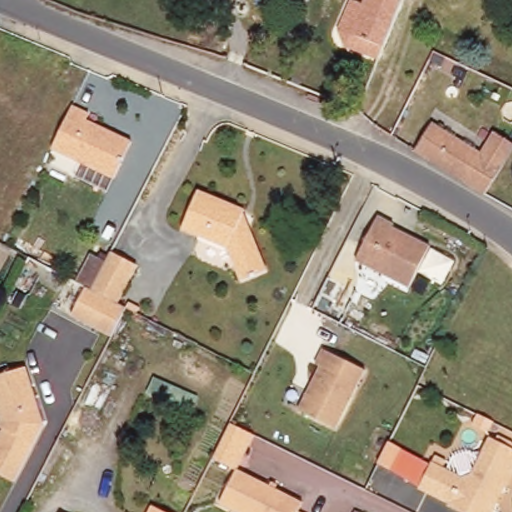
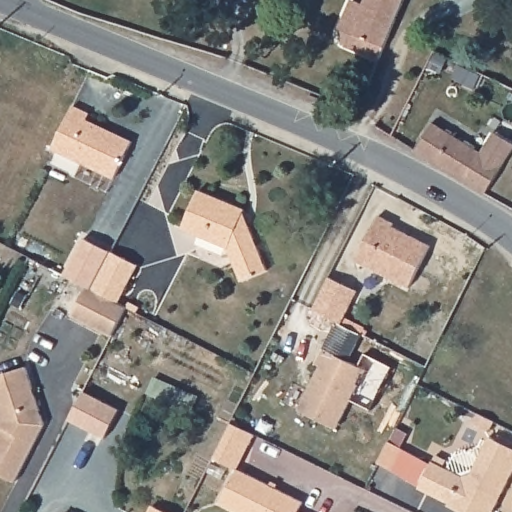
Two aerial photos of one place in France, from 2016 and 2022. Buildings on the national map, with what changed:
unchanged [(349,45),(342,30),(355,1),(364,5),(366,0),(405,0),(389,40),(385,48),(381,58),(349,45)]
unchanged [(138,143),(120,179),(59,150),(80,107),(96,115),(93,121),(138,143)]
unchanged [(488,155),(471,183),(420,152),(438,124),(488,155)]
unchanged [(250,211),(245,224),(255,228),(273,272),(248,283),(235,250),(188,230),(204,192),(250,211)]
unchanged [(400,225),(398,228),(436,248),(415,288),(362,261),(384,217),(400,225)]
unchanged [(143,266),(123,304),(98,291),(118,253),(143,266)]
new [(333,278),(362,292),(345,325),(317,311),(333,278)]
unchanged [(98,291),(123,304),(132,309),(118,338),(79,317),(82,310),(93,289),(98,291)]
unchanged [(371,371),(341,430),(305,412),(327,368),(322,366),(329,350),(371,371)]
unchanged [(50,426),(20,484),(0,472),(0,450),(10,430),(0,399),(0,378),(32,369),(50,426)]
new [(86,392),(123,411),(108,439),(71,420),(86,392)]
unchanged [(374,460),(378,450),(384,438),(397,445),(386,466),(374,460)]
unchanged [(477,476),(495,439),(512,447),(512,483),(497,512),(465,512),(453,506),(454,504),(425,489),(440,457),(451,462),(448,469),(467,478),(477,476)]
unchanged [(304,512),(241,512),(226,505),(242,471),(308,504),(304,512)]
unchanged [(168,512),(156,512),(159,507),(168,512)]

